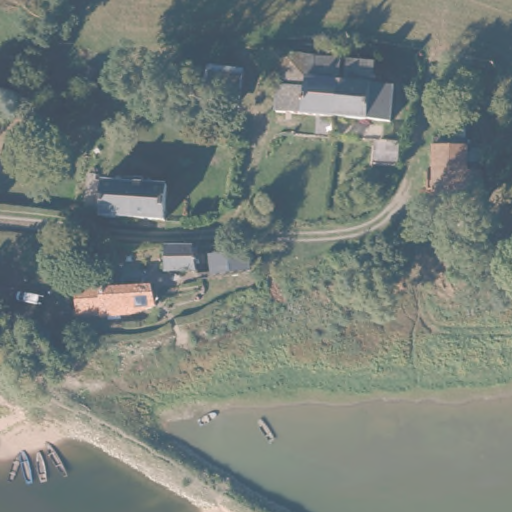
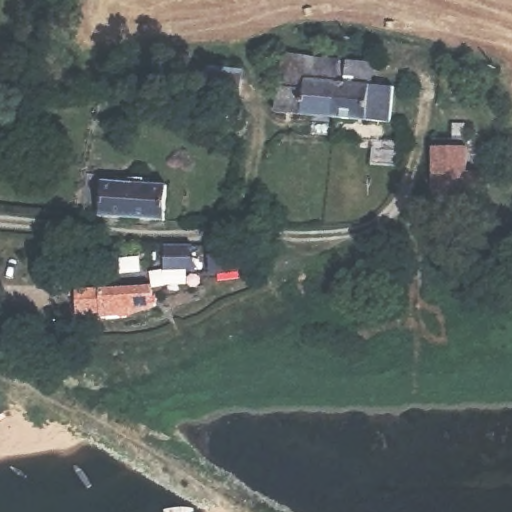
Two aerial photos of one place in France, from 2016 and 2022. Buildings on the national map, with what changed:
unchanged [(278,119),(281,58),(347,60),(342,121),(278,119)]
unchanged [(375,61),(374,84),(399,85),(397,123),(342,121),(347,60),(353,60),(375,61)]
unchanged [(219,93),(218,118),(185,115),(188,90),(219,93)]
unchanged [(488,202),(472,202),(467,202),(464,212),(463,215),(460,217),(458,217),(456,217),(453,216),(451,213),(449,211),(449,206),(438,206),(437,150),(471,149),(472,180),(488,180),(488,202)]
unchanged [(169,219),(141,219),(103,219),(103,184),(141,185),(169,185),(169,219)]
unchanged [(202,248),(200,271),(159,268),(160,246),(202,248)]
unchanged [(248,258),(246,277),(212,273),(214,254),(248,258)]
unchanged [(117,279),(117,284),(120,284),(123,286),(124,289),(124,292),(158,296),(155,318),(75,311),(77,288),(99,291),(100,278),(117,279)]

